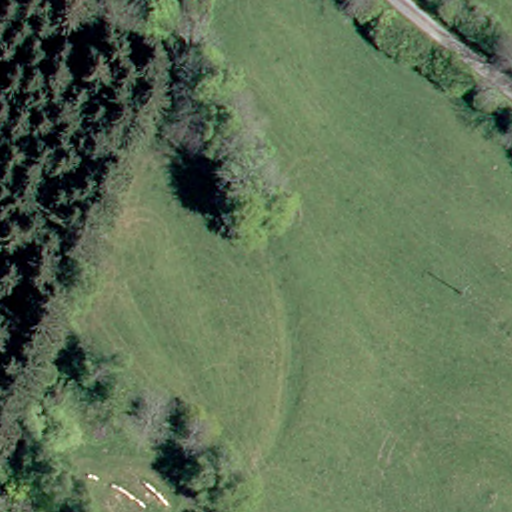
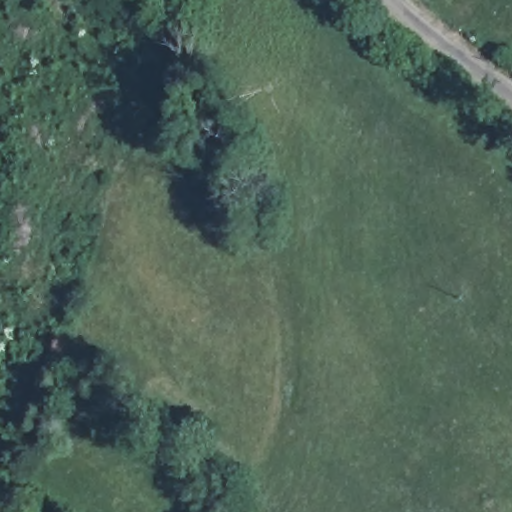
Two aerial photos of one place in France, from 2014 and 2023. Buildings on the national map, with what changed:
[]

